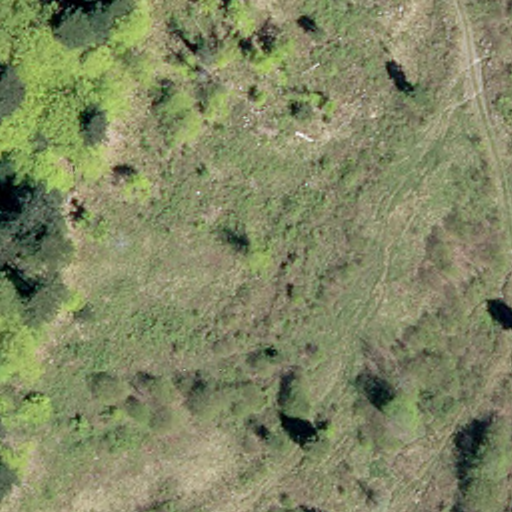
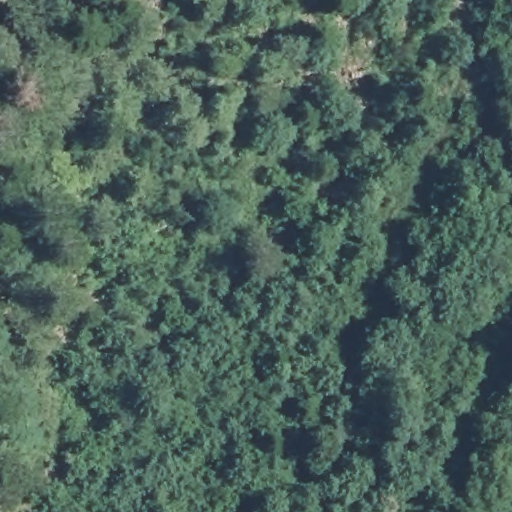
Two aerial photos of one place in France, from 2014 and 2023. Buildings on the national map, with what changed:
[]

